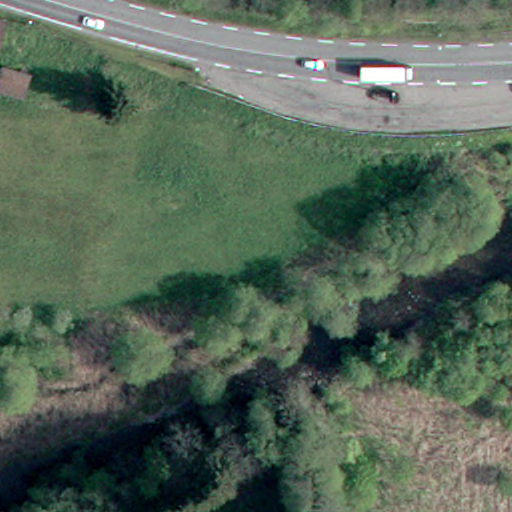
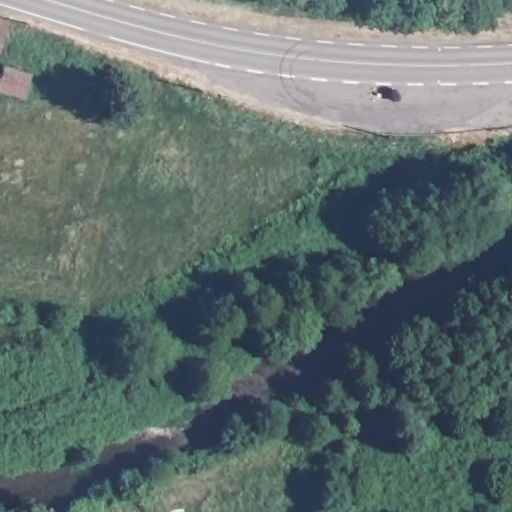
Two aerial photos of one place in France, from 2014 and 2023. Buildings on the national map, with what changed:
unchanged [(2,23),(0,28),(0,17),(2,18),(2,23)]
unchanged [(28,75),(22,96),(0,88),(0,75),(3,66),(28,75)]

